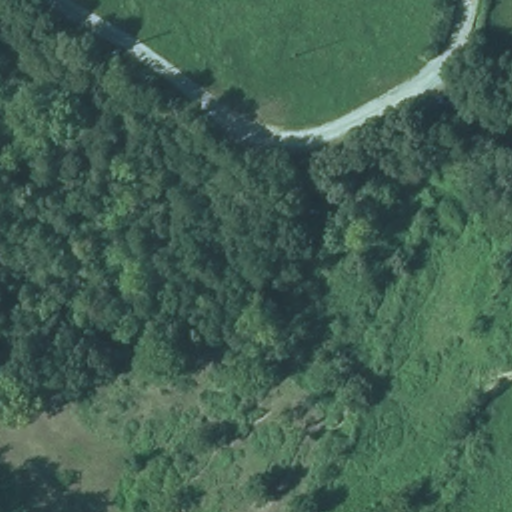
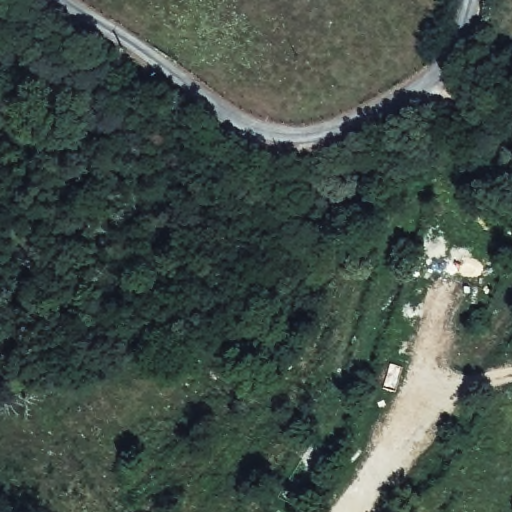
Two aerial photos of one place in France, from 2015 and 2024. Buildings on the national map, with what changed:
[]

